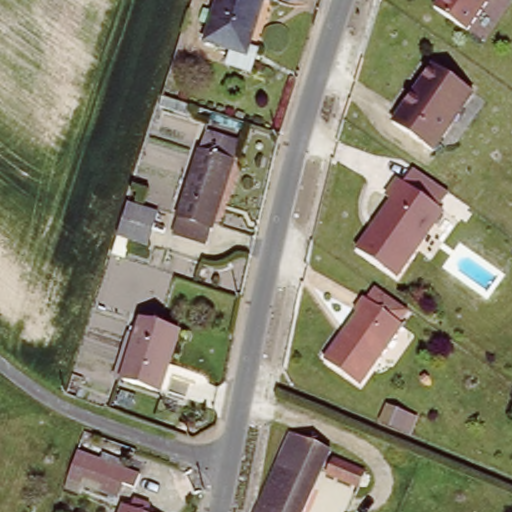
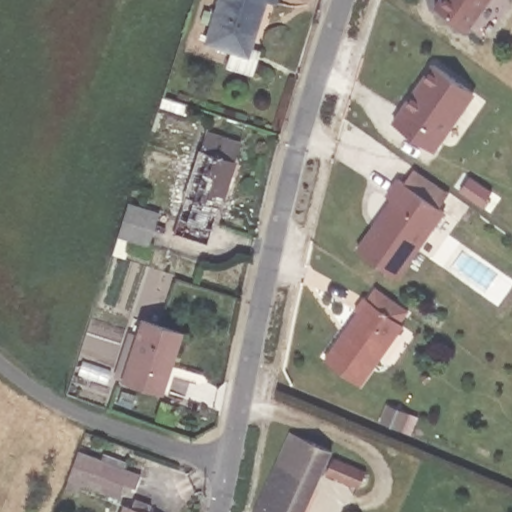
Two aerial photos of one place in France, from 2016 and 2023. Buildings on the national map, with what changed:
unchanged [(228,44),(206,37),(218,0),(274,0),(257,46),(264,47),(256,69),(224,59),(228,44)]
unchanged [(465,26),(433,3),(435,0),(483,0),(465,26)]
unchanged [(431,151),(392,123),(434,66),(473,93),(431,151)]
unchanged [(171,247),(196,168),(201,148),(233,158),(227,177),(203,256),(171,247)]
unchanged [(389,199),(384,195),(397,178),(442,210),(396,277),(356,249),(389,199)]
unchanged [(121,230),(131,199),(160,209),(150,239),(121,230)]
unchanged [(359,314),(355,311),(364,299),(403,324),(361,385),(326,362),(359,314)]
unchanged [(183,335),(164,390),(123,376),(118,374),(131,332),(138,334),(142,320),(183,335)]
unchanged [(409,415),(403,432),(381,423),(388,406),(409,415)]
unchanged [(255,512),(290,434),(329,452),(303,512),(255,512)]
unchanged [(80,488),(63,482),(73,453),(131,474),(128,486),(118,483),(114,496),(81,485),(80,488)]
unchanged [(327,474),(334,459),(364,473),(358,488),(327,474)]

